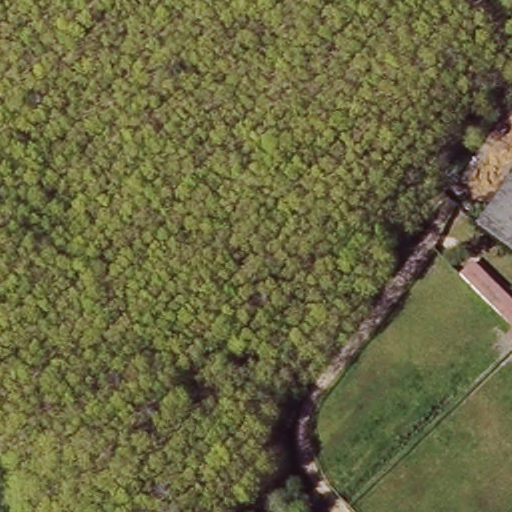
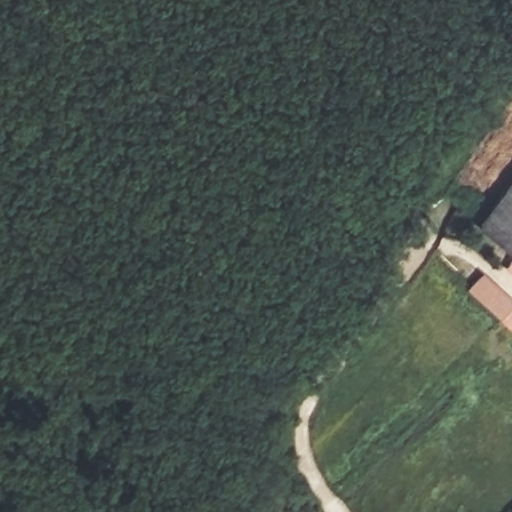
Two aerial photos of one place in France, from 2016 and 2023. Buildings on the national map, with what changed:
unchanged [(477,215),(512,169),(512,238),(477,215)]
unchanged [(512,297),(512,326),(459,272),(474,258),(512,297)]

